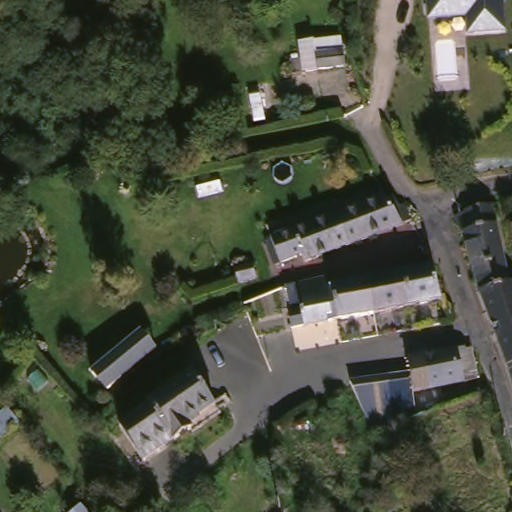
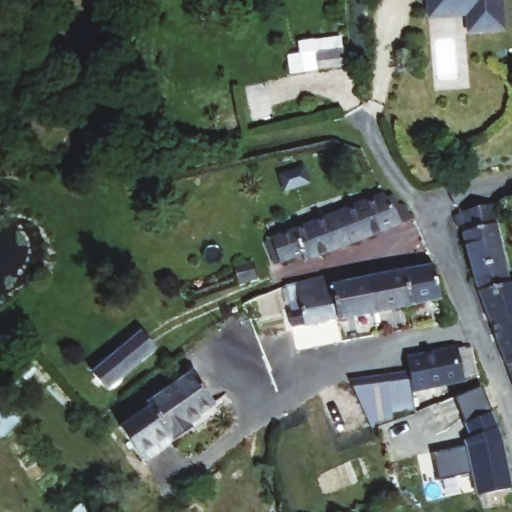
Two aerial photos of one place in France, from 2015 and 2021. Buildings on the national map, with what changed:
unchanged [(464,15),(425,19),(424,0),(502,0),(505,29),(467,35),(464,15)]
unchanged [(350,66),(296,73),(293,51),(316,46),(315,36),(348,30),(350,66)]
unchanged [(470,119),(512,111),(512,137),(475,145),(470,119)]
unchanged [(385,192),(387,196),(393,193),(399,204),(404,202),(411,219),(365,236),(305,258),(301,252),(265,265),(257,243),(332,213),(385,192)]
unchanged [(512,273),(480,283),(462,224),(467,223),(466,217),(458,219),(455,209),(464,207),(463,205),(490,198),(495,216),(512,273)]
unchanged [(414,263),(425,262),(445,258),(451,293),(420,298),(414,263)]
unchanged [(239,268),(256,262),(258,270),(260,275),(244,281),(239,268)]
unchanged [(376,270),(380,269),(381,270),(414,263),(420,298),(384,305),(376,270)]
unchanged [(295,282),(310,278),(336,270),(338,279),(337,279),(343,312),(313,318),(310,319),(310,318),(297,320),(295,306),(297,305),(292,283),(295,282)]
unchanged [(337,279),(338,279),(363,273),(376,270),(384,305),(343,312),(337,279)]
unchanged [(480,283),(512,273),(512,374),(500,341),(480,283)]
unchanged [(133,326),(152,347),(102,387),(83,364),(133,326)]
unchanged [(433,388),(427,356),(463,348),(463,351),(476,348),(481,374),(469,378),(470,381),(433,388)]
unchanged [(216,395),(191,414),(197,422),(147,458),(122,422),(152,399),(150,397),(194,364),(216,395)]
unchanged [(351,379),(365,377),(376,375),(393,373),(415,369),(418,405),(401,407),(397,408),(398,416),(382,423),(380,424),(374,426),(352,381),(351,379)]
new [(492,413),(503,440),(512,482),(512,489),(477,496),(472,472),(439,479),(433,451),(466,445),(465,440),(471,437),(455,399),(483,387),(492,413)]

